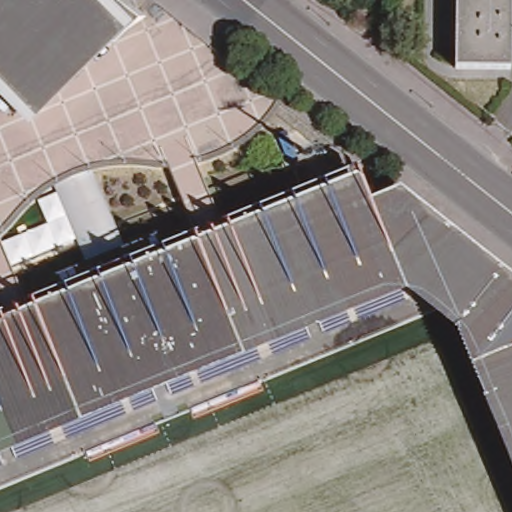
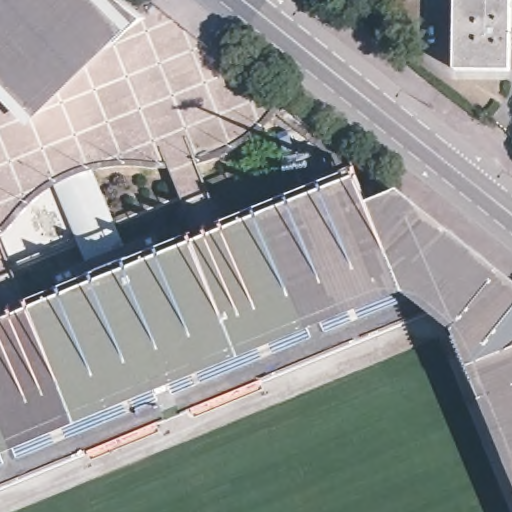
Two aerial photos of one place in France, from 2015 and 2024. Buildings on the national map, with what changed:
unchanged [(133,20),(23,130),(0,106),(0,0),(114,0),(133,20)]
unchanged [(194,243),(164,168),(132,165),(107,164),(88,168),(125,271),(85,287),(30,310),(5,320),(0,311),(0,106),(23,130),(133,20),(114,0),(150,0),(275,105),(263,125),(244,142),(221,155),(194,162),(224,231),(194,243)]
unchanged [(463,0),(512,0),(512,67),(462,66),(463,0)]
unchanged [(5,320),(30,310),(85,287),(125,271),(194,243),(224,231),(355,178),(367,203),(399,191),(512,282),(512,478),(451,331),(405,296),(0,462),(0,322),(5,320)]

